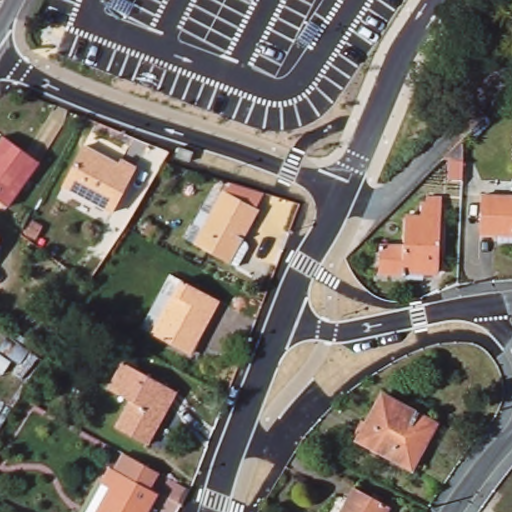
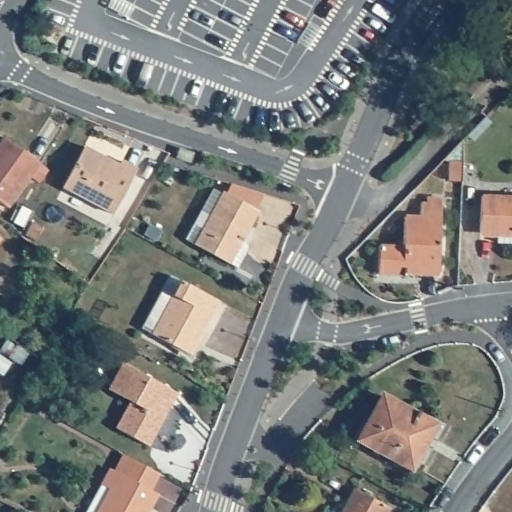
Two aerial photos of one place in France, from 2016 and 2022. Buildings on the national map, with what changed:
unchanged [(4,207),(0,204),(0,140),(4,136),(39,164),(4,207)]
unchanged [(112,211),(65,185),(87,145),(110,157),(112,153),(137,167),(112,211)]
unchanged [(198,155),(194,166),(181,161),(185,151),(198,155)]
unchanged [(450,161),(465,162),(464,178),(454,177),(450,177),(450,161)]
unchanged [(252,225),(243,241),(248,244),(250,249),(238,268),(227,262),(196,244),(187,239),(196,223),(204,228),(217,205),(220,206),(227,193),(231,185),(265,196),(257,210),(250,224),(252,225)]
unchanged [(403,272),(403,277),(376,275),(378,245),(400,245),(402,219),(417,219),(419,205),(424,205),(425,196),(438,197),(439,206),(434,273),(403,272)]
unchanged [(512,198),(512,242),(497,241),(496,233),(482,231),(483,196),(512,198)]
unchanged [(0,239),(0,236),(2,237),(0,239)]
unchanged [(216,300),(209,313),(212,315),(189,355),(154,335),(142,330),(172,275),(185,282),(216,300)]
unchanged [(147,446),(117,429),(130,401),(111,391),(115,383),(125,365),(177,391),(147,446)]
unchanged [(355,439),(378,394),(413,411),(409,420),(428,430),(407,467),(355,439)]
unchanged [(154,511),(153,512),(93,512),(107,486),(115,472),(157,495),(151,510),(154,511)]
unchanged [(387,512),(341,512),(356,485),(392,503),(387,512)]

